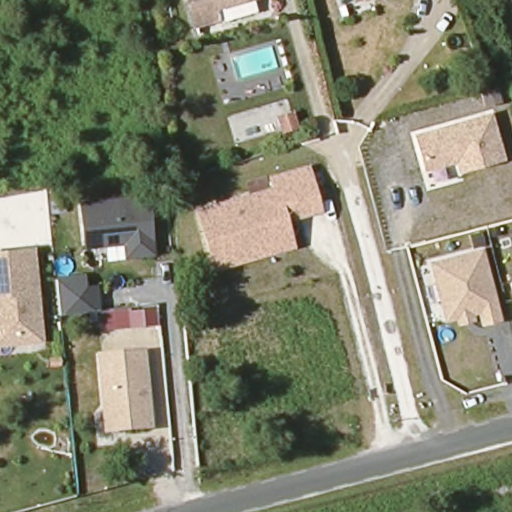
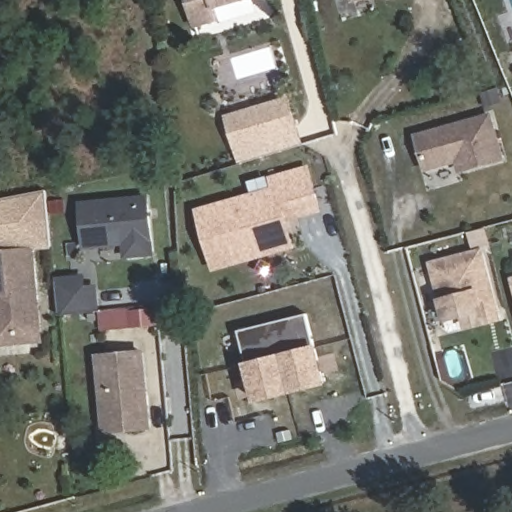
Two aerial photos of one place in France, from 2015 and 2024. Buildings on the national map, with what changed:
unchanged [(214,8),(217,20),(195,27),(186,0),(241,0),(214,8)]
new [(285,97),(293,124),(235,144),(225,116),(285,97)]
unchanged [(461,173),(457,162),(424,172),(412,132),(493,112),(507,161),(461,173)]
new [(293,124),(300,142),(241,162),(235,144),(293,124)]
unchanged [(211,265),(195,215),(272,190),(268,179),(304,167),(315,202),(317,209),(283,220),(289,240),(291,247),(214,272),(211,265)]
unchanged [(43,194),(44,249),(32,249),(0,252),(0,202),(43,194)]
unchanged [(125,261),(123,244),(84,247),(80,203),(149,197),(155,256),(125,261)]
unchanged [(481,327),(477,315),(473,315),(476,322),(457,327),(455,321),(445,323),(427,261),(485,248),(505,321),(481,327)]
unchanged [(0,343),(0,252),(32,249),(40,332),(40,339),(0,343)]
new [(91,272),(93,283),(96,308),(62,313),(59,277),(84,274),(91,272)]
unchanged [(512,277),(512,283),(510,277),(512,277)]
unchanged [(101,329),(100,310),(159,306),(161,326),(101,329)]
new [(306,313),(315,345),(316,345),(326,384),(252,403),(242,363),(247,362),(238,332),(306,313)]
unchanged [(152,430),(104,435),(96,353),(145,348),(152,430)]

